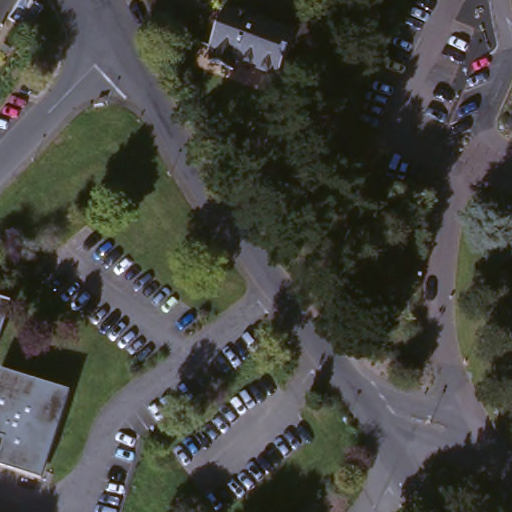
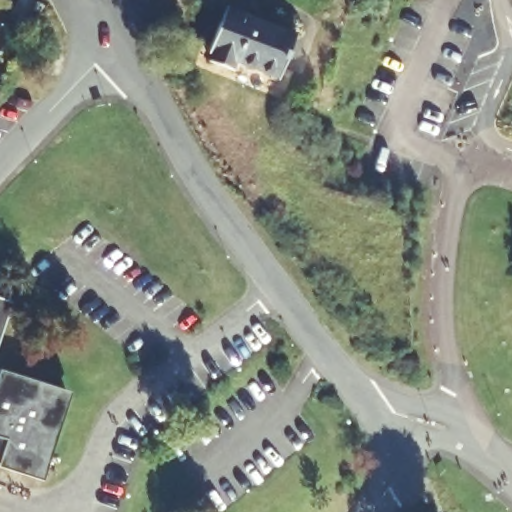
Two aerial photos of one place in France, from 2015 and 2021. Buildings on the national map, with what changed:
unchanged [(299,34),(280,79),(207,60),(226,5),(299,34)]
unchanged [(0,350),(0,301),(15,306),(1,350),(0,350)]
unchanged [(4,370),(72,391),(42,479),(0,464),(0,381),(4,370)]

